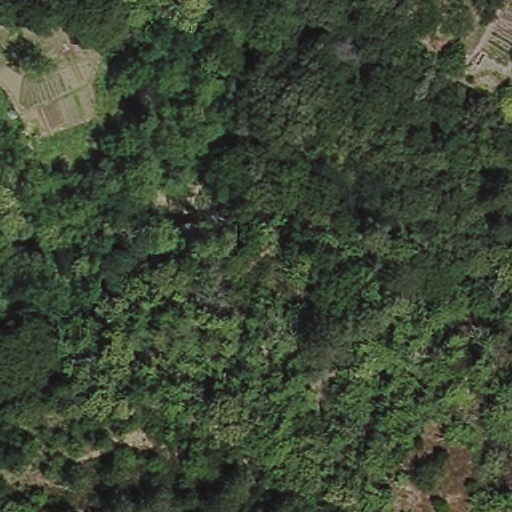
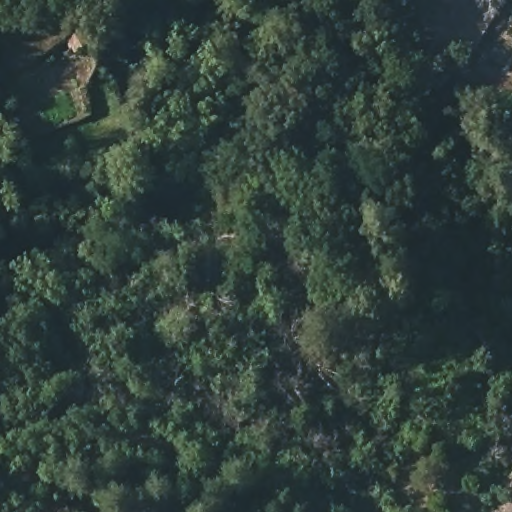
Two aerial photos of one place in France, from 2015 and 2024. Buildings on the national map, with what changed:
unchanged [(29,66),(24,49),(46,45),(49,60),(29,66)]

